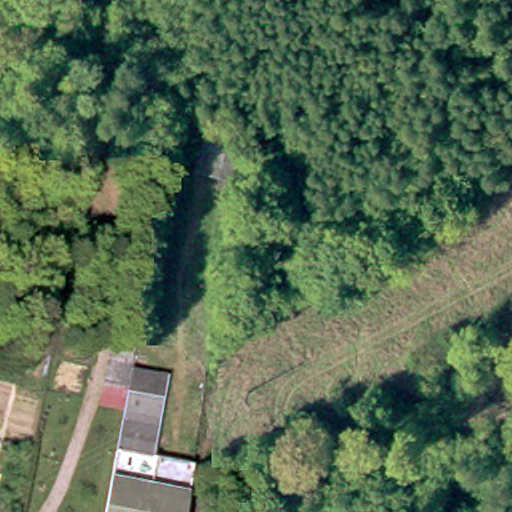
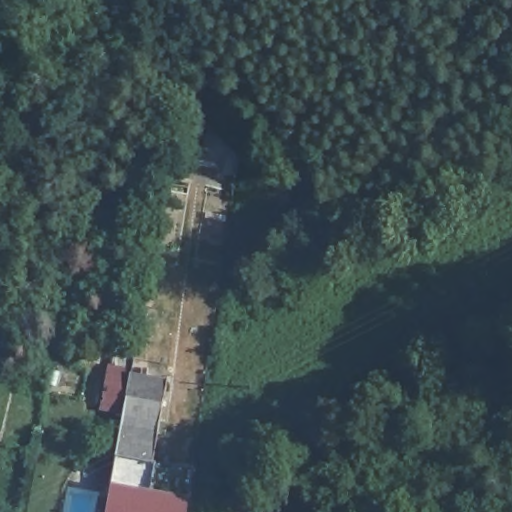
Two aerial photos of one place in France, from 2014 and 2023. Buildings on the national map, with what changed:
unchanged [(234,181),(202,174),(196,173),(206,131),(210,135),(236,161),(234,181)]
unchanged [(163,406),(152,466),(192,473),(186,512),(105,512),(125,399),(163,406)]

